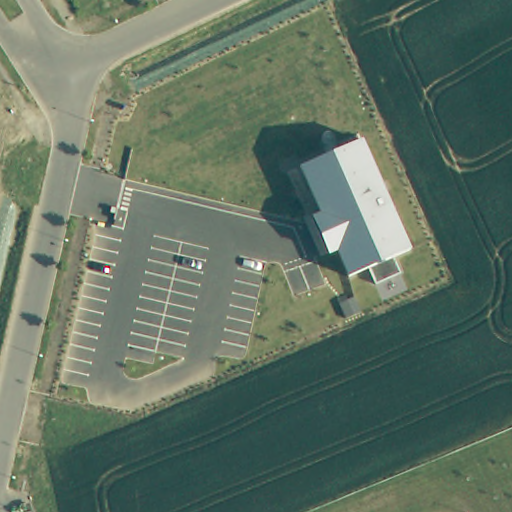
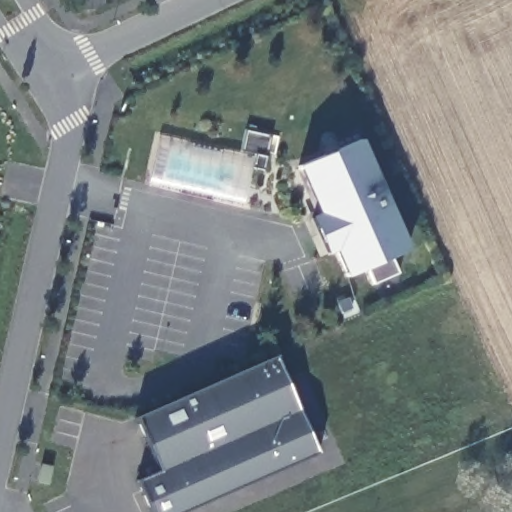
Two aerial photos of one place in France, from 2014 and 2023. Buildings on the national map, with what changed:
new [(249,130),(275,136),(268,171),(255,168),(258,155),(244,152),(249,130)]
unchanged [(335,251),(326,254),(310,214),(319,211),(299,164),(362,137),(411,251),(396,258),(401,272),(377,283),(369,267),(347,277),(335,251)]
new [(185,512),(151,512),(138,479),(159,470),(136,417),(276,355),(318,454),(185,512)]
new [(44,465),(54,467),(50,485),(40,484),(44,465)]

